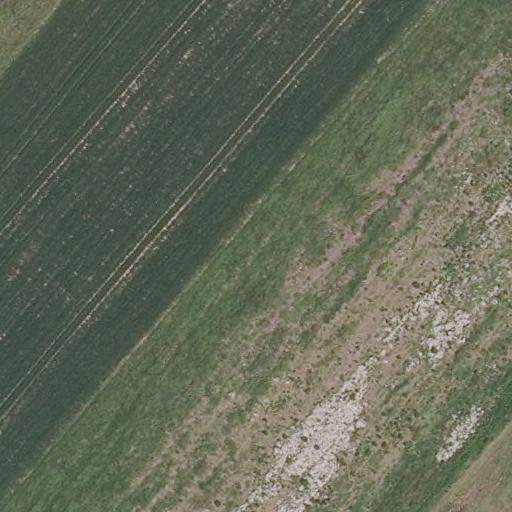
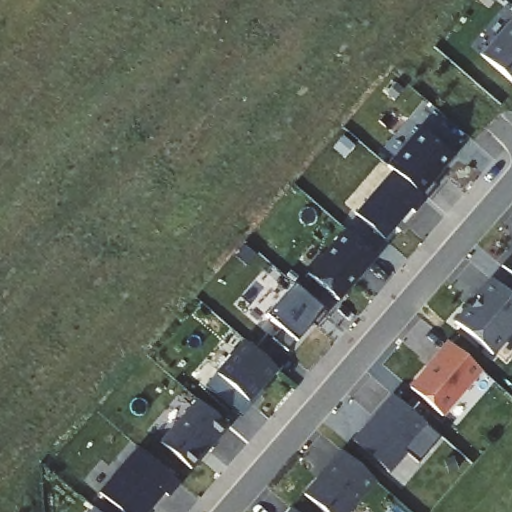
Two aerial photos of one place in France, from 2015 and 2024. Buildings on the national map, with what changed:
new [(512,81),(481,55),(512,19),(512,81)]
new [(387,165),(420,128),(452,156),(431,180),(436,185),(425,199),(387,165)]
new [(426,200),(415,212),(411,209),(385,240),(355,214),(392,170),(426,200)]
new [(343,230),(377,258),(339,301),(307,273),(343,230)]
new [(512,275),(506,270),(512,264),(512,275)]
new [(475,311),(483,302),(481,301),(497,283),(512,297),(512,337),(495,357),(458,325),(473,310),(475,311)]
new [(271,338),(280,329),(264,315),(292,285),(326,312),(315,326),(311,322),(286,350),(271,338)]
new [(250,402),(217,373),(243,341),(276,370),(250,402)]
new [(448,342),(481,371),(440,418),(407,388),(448,342)]
new [(237,415),(216,396),(205,387),(216,373),(227,383),(248,402),(237,415)]
new [(440,436),(417,462),(408,454),(391,473),(351,440),(391,394),(425,424),(440,436)]
new [(201,404),(232,431),(195,473),(165,446),(201,404)]
new [(302,495),(340,451),(377,482),(351,512),(323,512),(302,495)]
new [(145,455),(182,487),(171,500),(168,498),(156,512),(119,512),(105,500),(145,455)]
new [(94,509),(98,512),(91,512),(94,509)]
new [(291,509),(294,512),(288,512),(291,509)]

